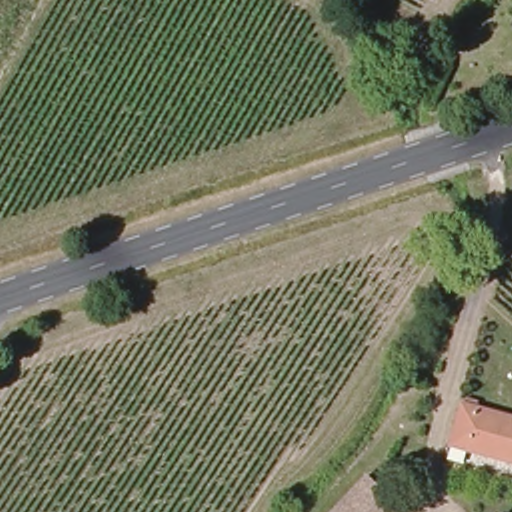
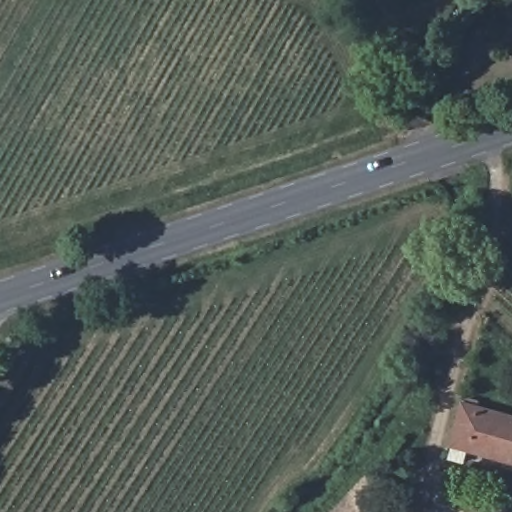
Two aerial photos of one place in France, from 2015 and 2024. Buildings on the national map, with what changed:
unchanged [(510,454),(508,460),(472,448),(466,464),(452,460),(467,404),(512,417),(512,454),(510,454)]
unchanged [(402,510),(400,512),(335,512),(367,477),(402,510)]

